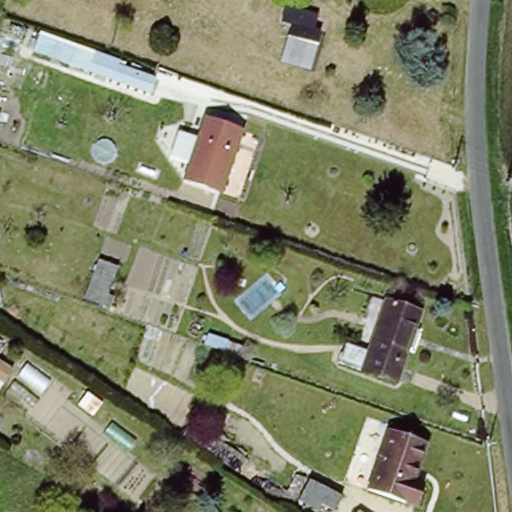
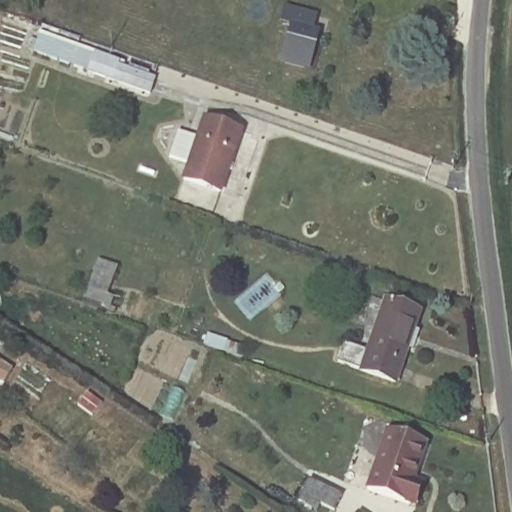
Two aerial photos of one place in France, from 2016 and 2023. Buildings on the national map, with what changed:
unchanged [(316,14),(312,29),(316,30),(307,65),(287,60),(295,26),(282,23),(287,6),(316,14)]
unchanged [(158,75),(153,90),(115,77),(120,62),(158,75)]
unchanged [(243,129),(224,189),(185,175),(205,116),(243,129)]
unchanged [(116,265),(103,303),(84,298),(98,257),(116,265)]
unchanged [(420,327),(414,347),(402,380),(340,360),(347,340),(369,346),(385,298),(425,312),(420,327)]
unchanged [(415,480),(423,483),(415,503),(366,486),(389,431),(424,442),(415,480)]
unchanged [(345,496),(340,510),(324,505),(321,510),(302,502),(309,483),(345,496)]

